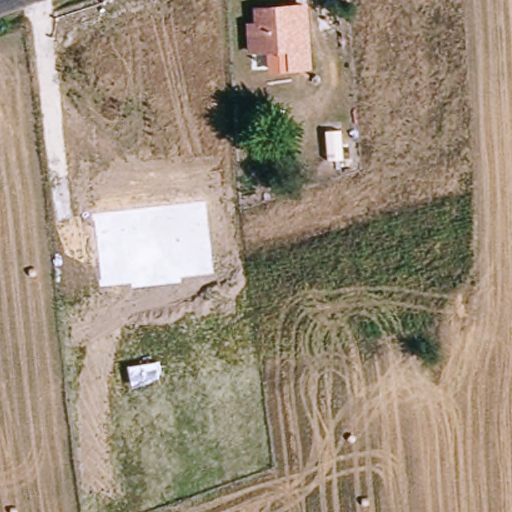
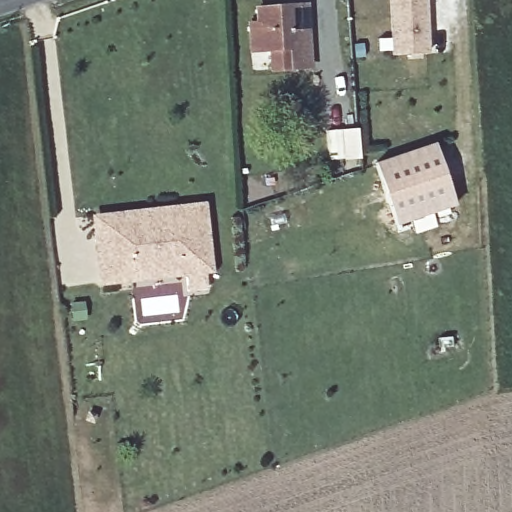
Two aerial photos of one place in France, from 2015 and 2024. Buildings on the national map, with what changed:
new [(423,18),(390,20),(389,0),(423,0),(423,18)]
new [(309,3),(314,66),(268,70),(268,54),(292,52),(288,4),(309,3)]
unchanged [(251,28),(252,6),(288,4),(292,52),(265,54),(249,52),(251,28)]
new [(423,18),(425,56),(391,58),(390,20),(423,18)]
new [(412,233),(407,219),(393,224),(373,162),(431,143),(452,204),(429,212),(434,225),(412,233)]
new [(206,202),(213,272),(97,285),(90,215),(206,202)]

